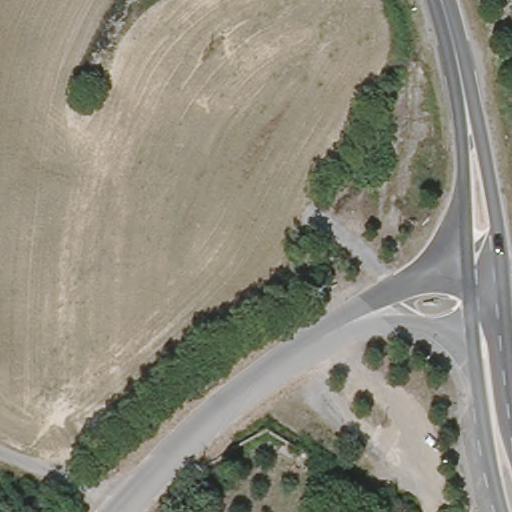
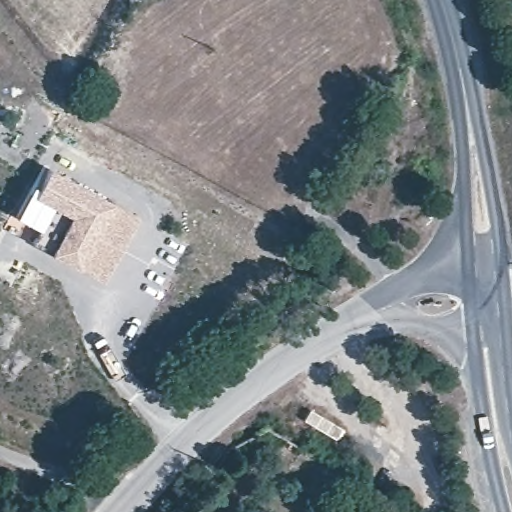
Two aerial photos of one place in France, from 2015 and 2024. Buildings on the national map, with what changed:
new [(44,162),(142,214),(108,281),(44,248),(68,207),(30,187),(44,162)]

